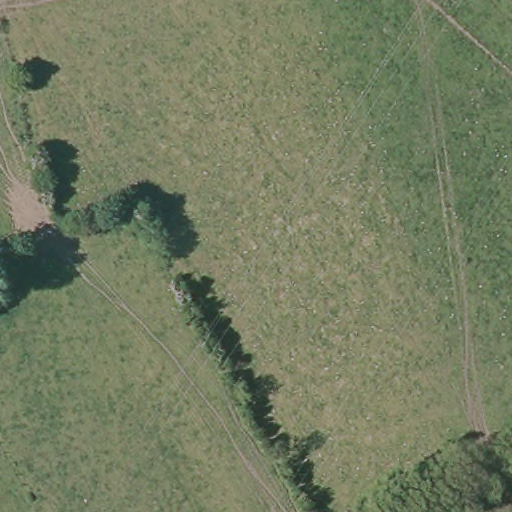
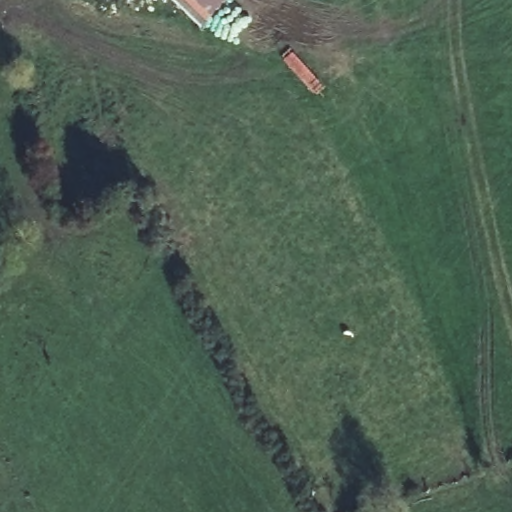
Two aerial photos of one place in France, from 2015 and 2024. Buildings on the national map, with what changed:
new [(200,30),(169,0),(231,0),(200,30)]

